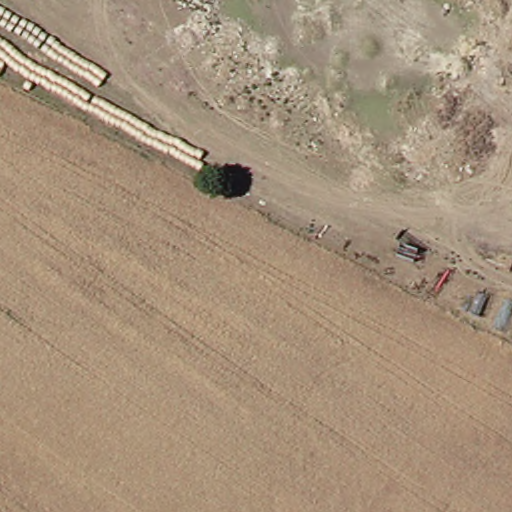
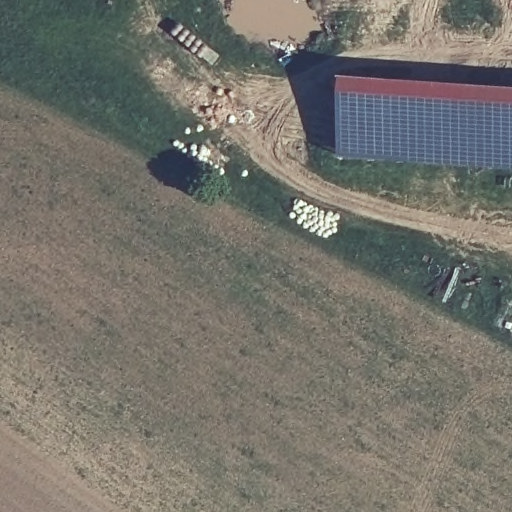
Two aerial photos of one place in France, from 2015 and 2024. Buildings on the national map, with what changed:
new [(512,83),(512,167),(335,157),(340,73),(512,83)]

